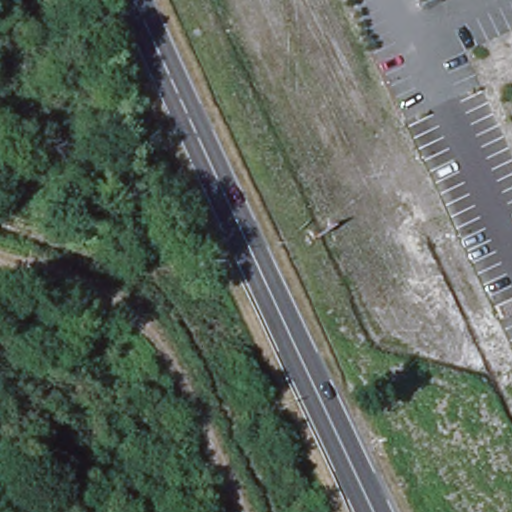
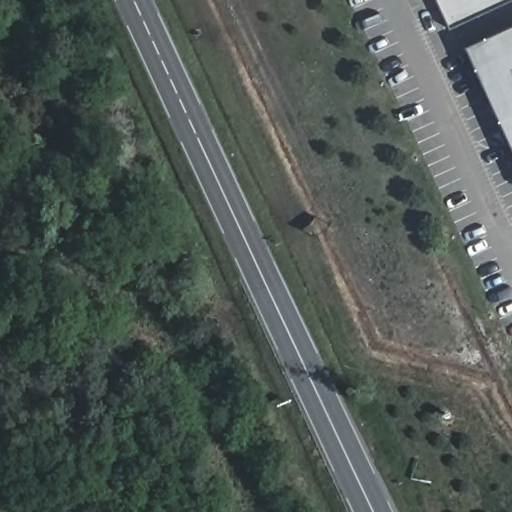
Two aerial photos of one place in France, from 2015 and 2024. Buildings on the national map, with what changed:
new [(449,28),(438,0),(511,0),(449,28)]
new [(512,25),(512,144),(467,46),(512,25)]

